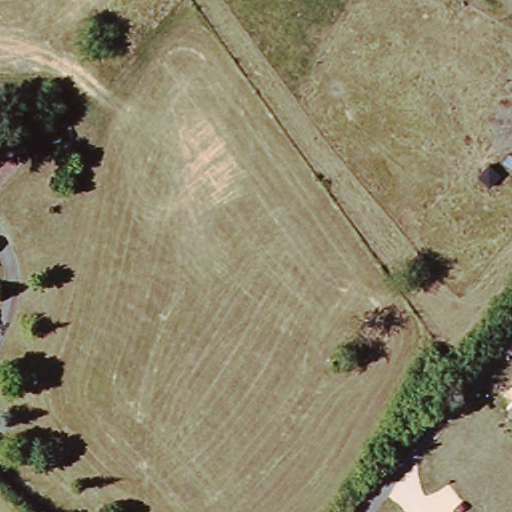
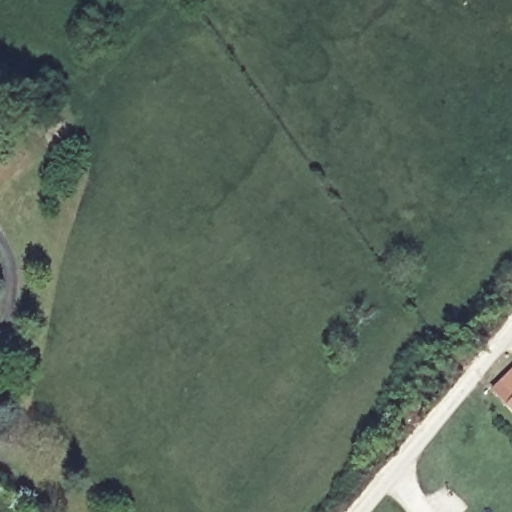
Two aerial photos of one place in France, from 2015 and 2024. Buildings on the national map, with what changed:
new [(511,406),(493,387),(512,368),(512,405),(511,406)]
unchanged [(511,406),(512,405),(512,407),(511,406)]

